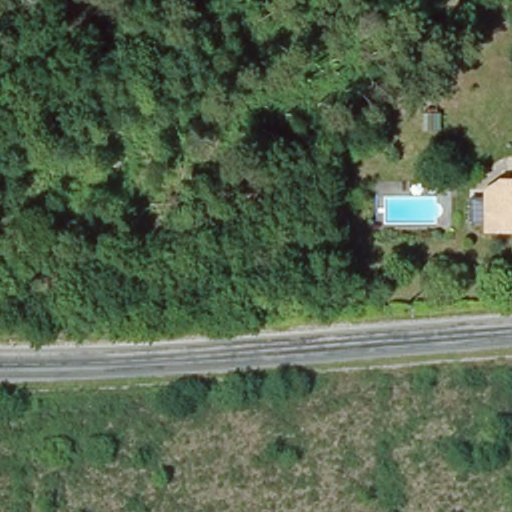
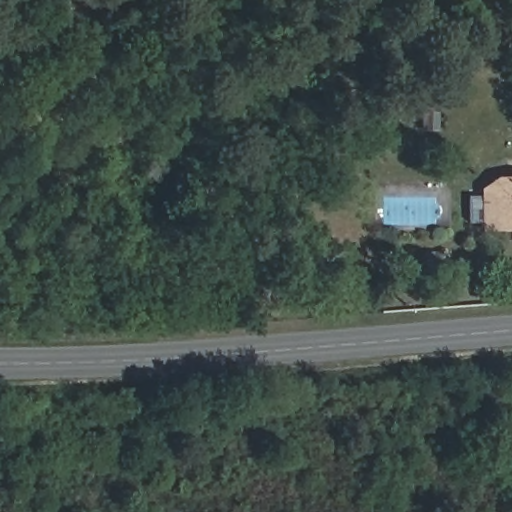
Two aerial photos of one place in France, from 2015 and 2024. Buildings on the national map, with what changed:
unchanged [(482,200),(500,184),(512,182),(512,229),(487,232),(482,200)]

